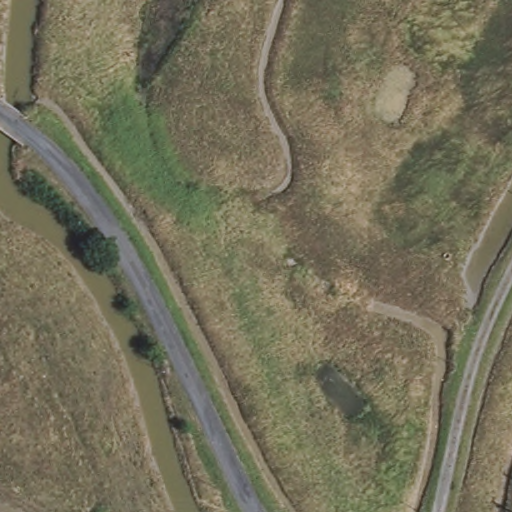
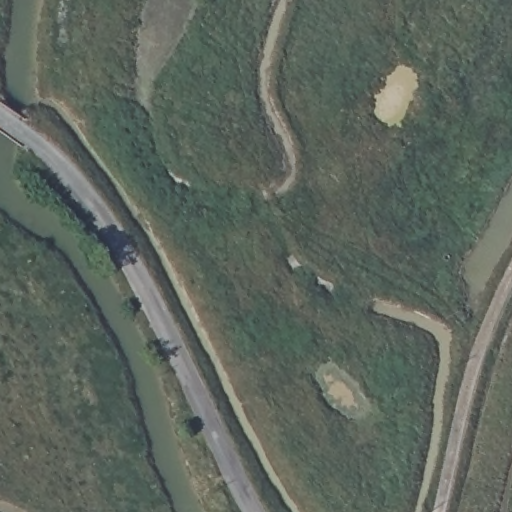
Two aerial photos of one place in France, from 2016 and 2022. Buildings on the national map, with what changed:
[]

